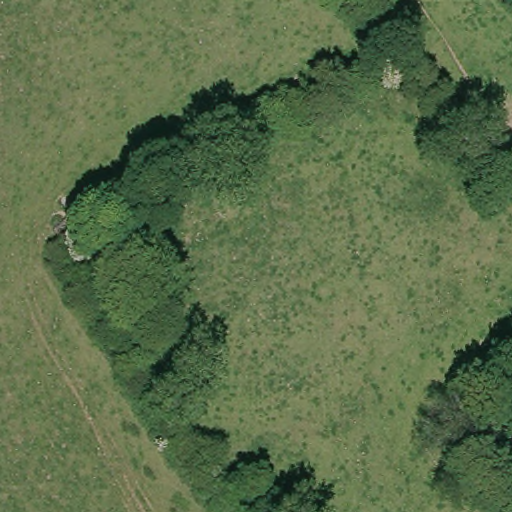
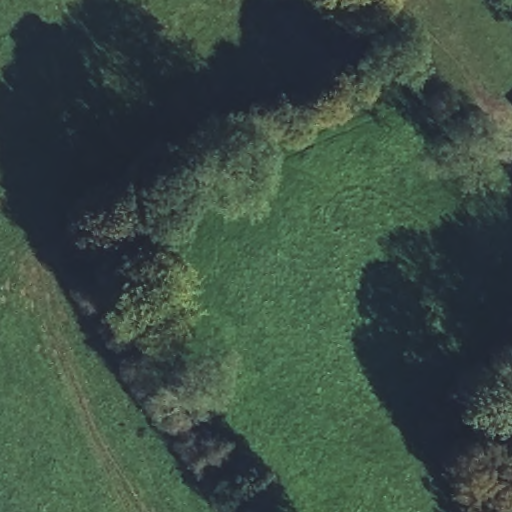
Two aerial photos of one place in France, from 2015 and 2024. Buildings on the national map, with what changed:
[]

